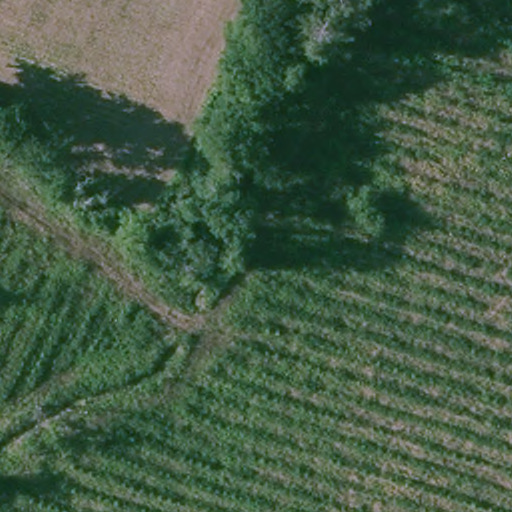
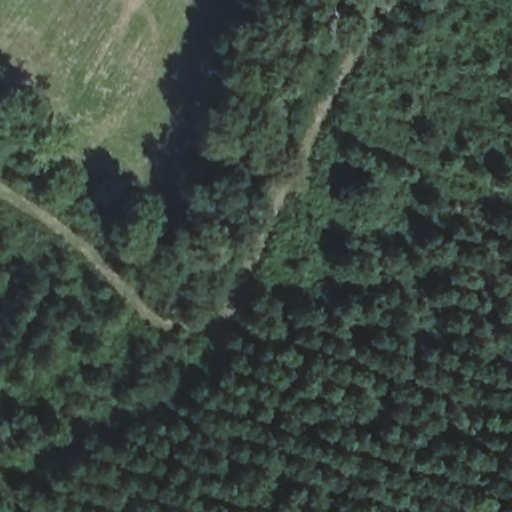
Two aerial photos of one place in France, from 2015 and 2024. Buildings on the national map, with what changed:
[]

